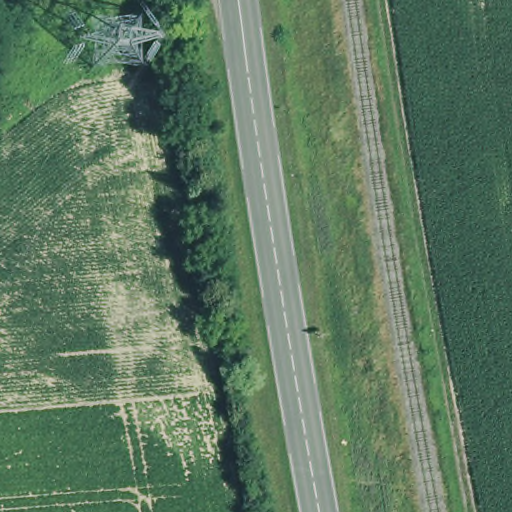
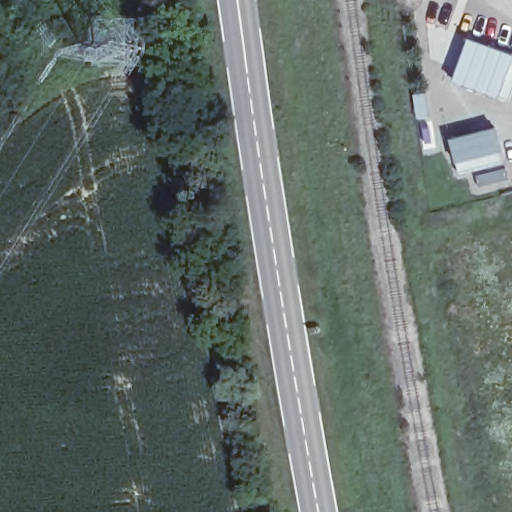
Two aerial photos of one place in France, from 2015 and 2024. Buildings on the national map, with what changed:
new [(469,37),(512,52),(512,94),(509,101),(452,80),(469,37)]
new [(494,126),(506,179),(479,185),(474,169),(457,172),(449,136),(494,126)]

